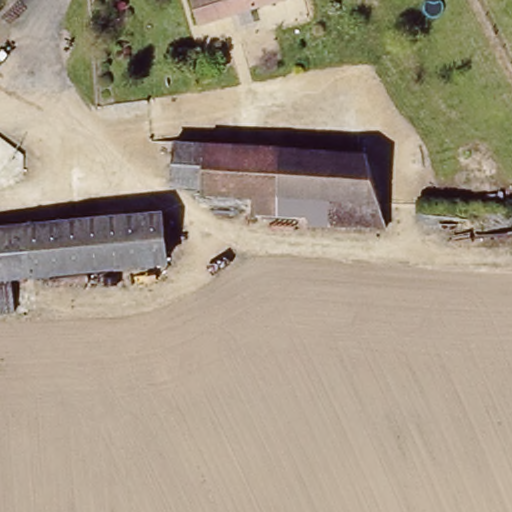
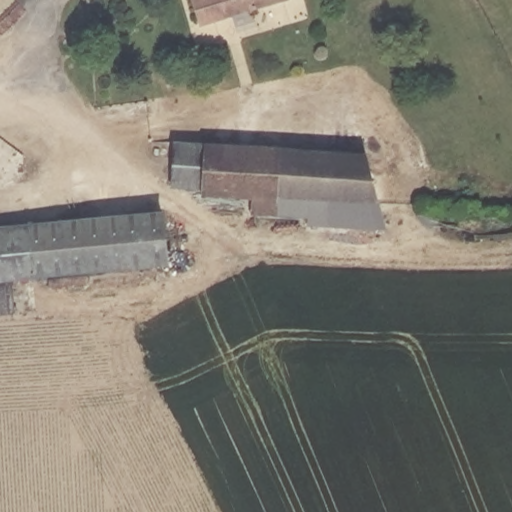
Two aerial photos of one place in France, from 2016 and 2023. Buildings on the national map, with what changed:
unchanged [(194,0),(273,0),(210,29),(194,0)]
unchanged [(176,148),(310,149),(309,217),(259,216),(259,203),(207,202),(207,189),(177,188),(176,148)]
unchanged [(309,217),(310,149),(365,149),(380,212),(383,223),(309,224),(309,217)]
unchanged [(12,276),(13,312),(0,312),(0,224),(164,211),(168,262),(12,276)]

